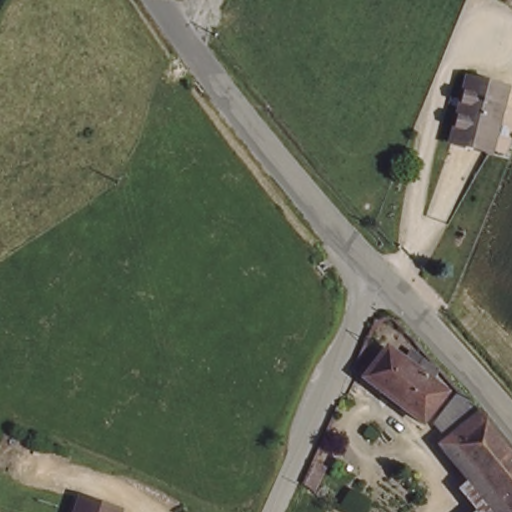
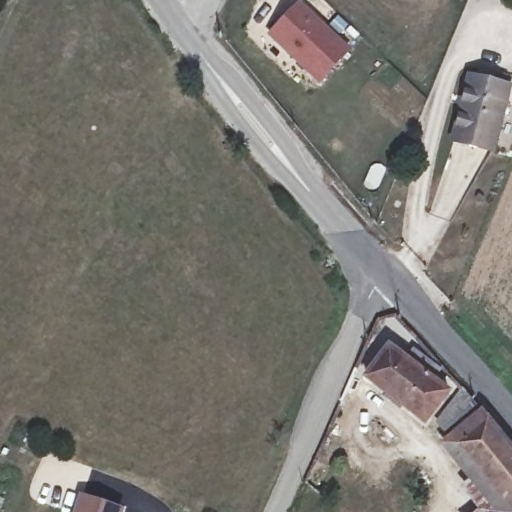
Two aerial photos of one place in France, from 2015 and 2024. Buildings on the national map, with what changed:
new [(319,84),(266,34),(299,1),(350,49),(319,84)]
unchanged [(489,154),(452,142),(471,77),(509,87),(489,154)]
unchanged [(403,358),(410,348),(436,367),(428,378),(444,392),(423,421),(364,377),(386,346),(403,358)]
unchanged [(454,453),(433,427),(459,392),(512,455),(512,512),(497,512),(450,458),(454,453)]
unchanged [(121,509),(120,512),(76,512),(81,495),(121,509)]

